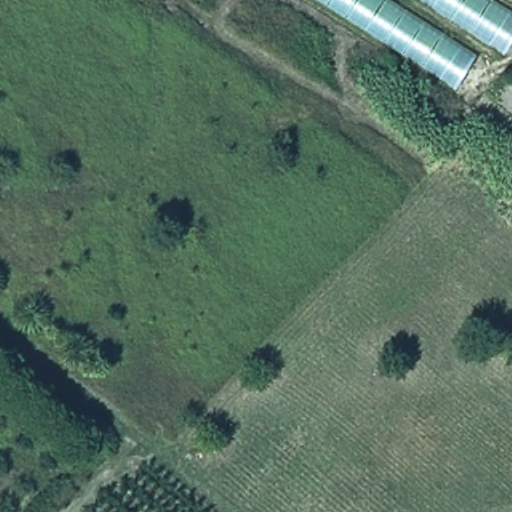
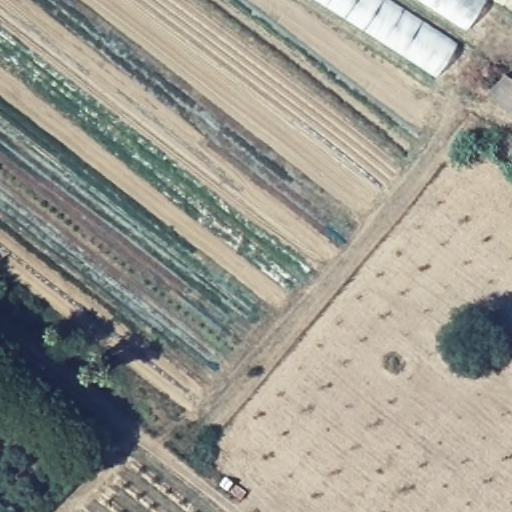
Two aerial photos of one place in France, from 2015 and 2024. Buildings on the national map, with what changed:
unchanged [(481,41),(455,87),(317,0),(512,0),(512,42),(504,55),(481,41)]
unchanged [(505,74),(510,77),(512,79),(512,113),(488,94),(505,74)]

